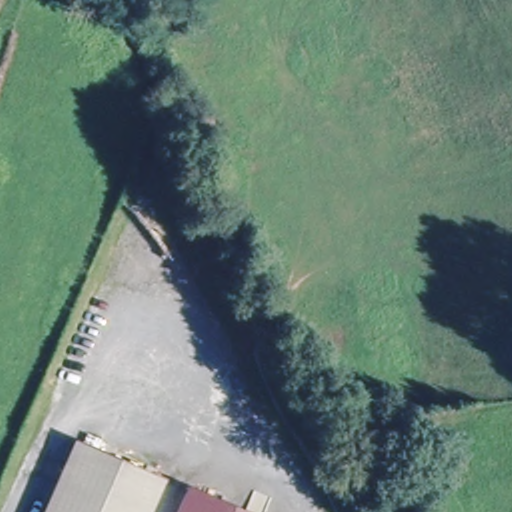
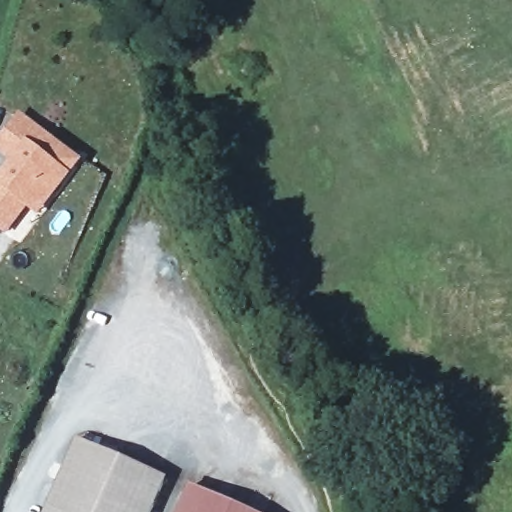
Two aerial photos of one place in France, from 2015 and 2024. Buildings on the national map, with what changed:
new [(1,228),(0,226),(0,175),(13,159),(0,149),(0,137),(18,115),(74,159),(48,192),(34,210),(23,201),(1,228)]
unchanged [(165,485),(152,512),(44,512),(74,445),(165,485)]
unchanged [(234,512),(180,512),(189,492),(234,512)]

